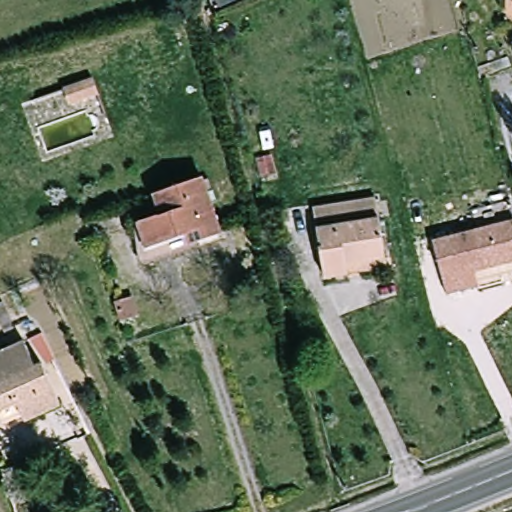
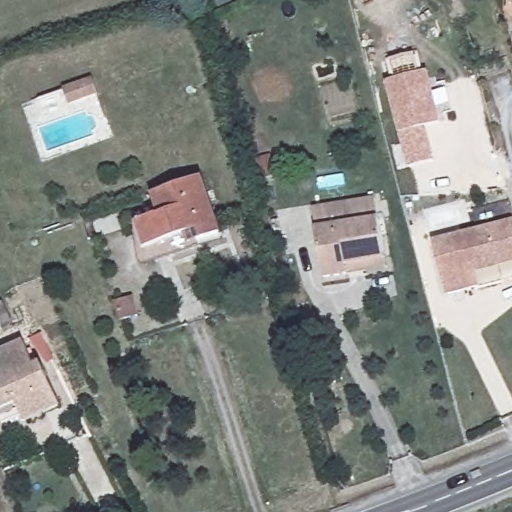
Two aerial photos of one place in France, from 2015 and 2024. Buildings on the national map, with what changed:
new [(443,123),(427,127),(435,158),(408,165),(386,81),(429,70),(443,123)]
unchanged [(98,95),(68,104),(64,90),(93,80),(98,95)]
unchanged [(270,156),(276,176),(261,179),(256,159),(270,156)]
unchanged [(160,212),(152,191),(200,175),(219,230),(149,254),(136,220),(160,212)]
unchanged [(348,261),(325,265),(317,213),(378,204),(385,244),(387,255),(348,261)]
unchanged [(431,242),(512,221),(512,262),(474,272),(478,287),(445,295),(431,242)]
unchanged [(131,298),(137,317),(121,322),(115,303),(131,298)]
unchanged [(35,363),(41,360),(61,402),(25,417),(22,411),(3,420),(0,413),(0,348),(23,337),(35,363)]

